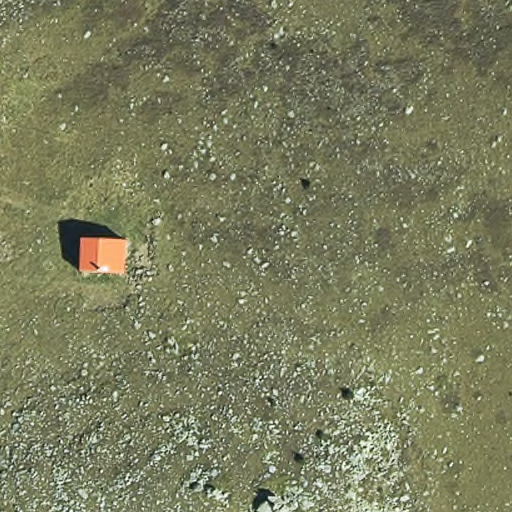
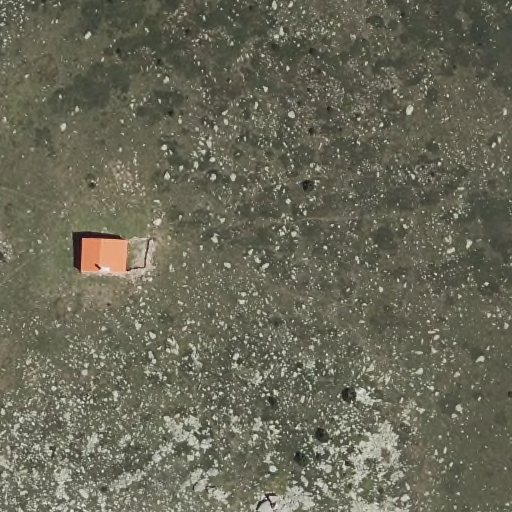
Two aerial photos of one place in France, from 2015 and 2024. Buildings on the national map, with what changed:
unchanged [(127,239),(127,270),(81,270),(82,235),(127,239)]

